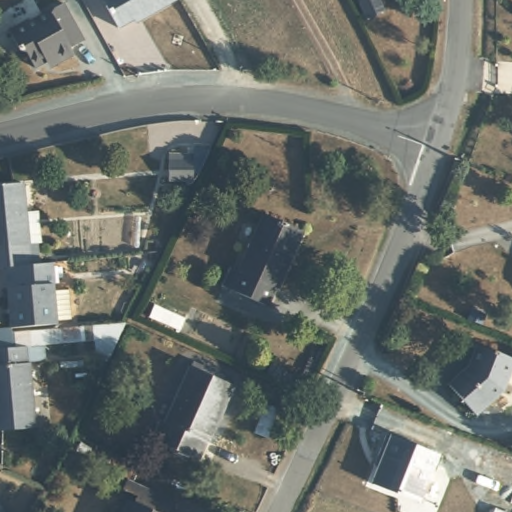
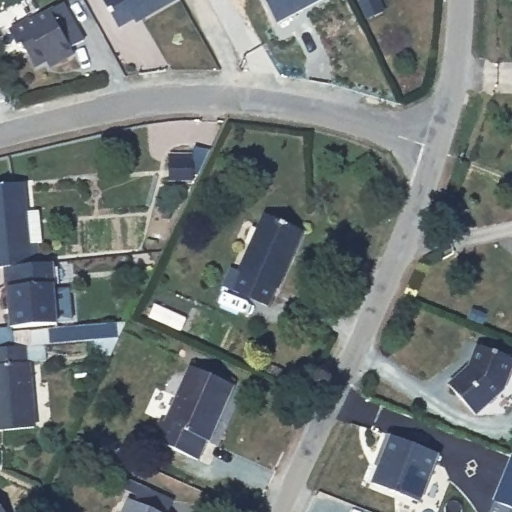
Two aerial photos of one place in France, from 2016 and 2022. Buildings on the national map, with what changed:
unchanged [(137,23),(135,18),(119,27),(102,0),(177,0),(137,23)]
new [(264,0),(323,0),(277,26),(264,0)]
unchanged [(81,39),(67,47),(70,52),(56,61),(54,59),(50,61),(45,59),(33,65),(25,51),(16,48),(6,29),(26,18),(30,20),(60,2),(81,39)]
unchanged [(194,176),(174,177),(172,149),(195,146),(195,143),(210,143),(194,176)]
unchanged [(16,209),(31,208),(34,239),(29,239),(30,262),(1,265),(0,266),(0,182),(15,180),(16,209)]
unchanged [(229,265),(235,268),(263,212),(300,228),(275,286),(271,284),(263,301),(230,287),(219,281),(229,265)]
unchanged [(44,288),(59,286),(61,317),(6,320),(1,265),(30,262),(41,261),(44,288)]
unchanged [(186,316),(182,327),(149,313),(155,302),(186,316)]
unchanged [(25,328),(26,343),(15,344),(15,361),(20,360),(25,419),(0,421),(0,346),(9,345),(8,330),(25,328)]
unchanged [(507,388),(480,411),(453,380),(471,365),(481,341),(512,353),(512,377),(507,388)]
unchanged [(208,439),(200,437),(194,454),(147,435),(155,417),(163,419),(185,364),(230,382),(208,439)]
unchanged [(421,502),(370,483),(388,435),(439,455),(421,502)]
unchanged [(494,500),(512,457),(512,507),(494,500)]
unchanged [(169,512),(120,512),(126,493),(133,494),(136,487),(124,482),(129,471),(176,493),(169,512)]
unchanged [(0,512),(0,507),(4,512),(0,512)]

